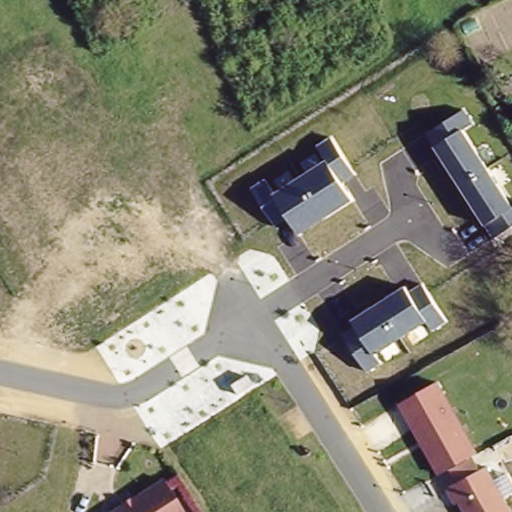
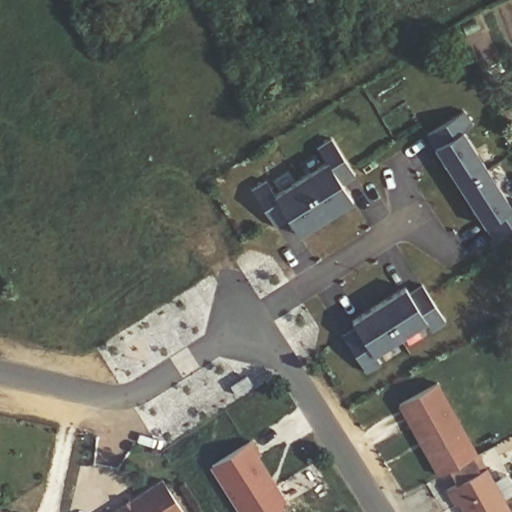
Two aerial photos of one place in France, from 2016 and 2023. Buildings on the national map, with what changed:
unchanged [(487,225),(483,227),(432,147),(436,144),(429,133),(464,110),(473,125),(463,132),(512,207),(512,228),(495,238),(487,225)]
unchanged [(251,189),(266,179),(274,192),(326,160),(318,145),(331,137),(354,176),(342,182),(353,201),(299,235),(289,217),(274,226),(251,189)]
unchanged [(339,333),(353,325),(351,321),(404,286),(408,291),(423,282),(446,320),(430,331),(426,322),(375,355),(380,363),(365,371),(339,333)]
unchanged [(436,382),(475,452),(471,455),(478,471),(454,483),(447,466),(435,473),(398,405),(436,382)]
new [(270,512),(237,512),(209,465),(252,437),(261,452),(258,455),(286,501),(270,512)]
unchanged [(488,466),(512,510),(512,512),(463,512),(458,502),(454,503),(446,488),(488,466)]
unchanged [(161,477),(185,512),(109,512),(161,477)]

